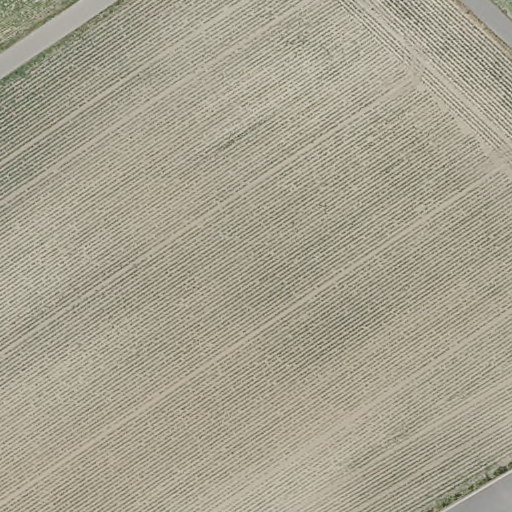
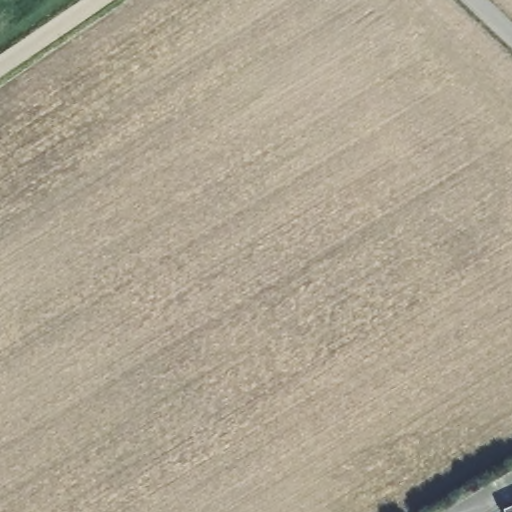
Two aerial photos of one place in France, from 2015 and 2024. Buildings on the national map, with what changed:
[]

